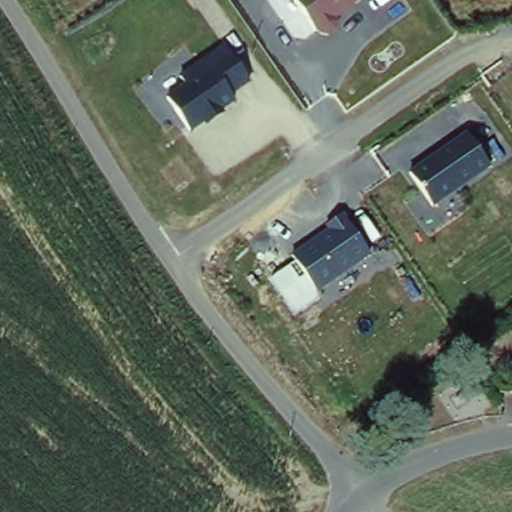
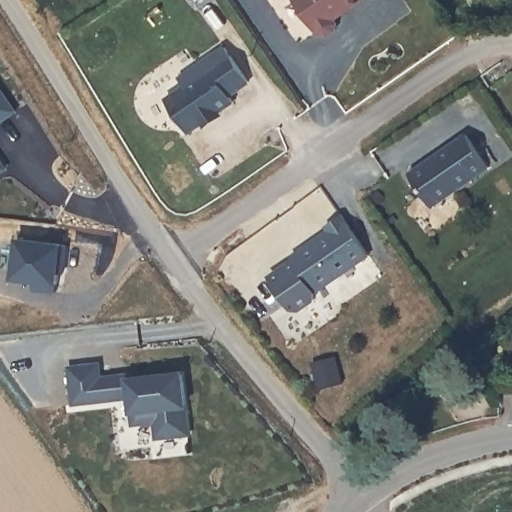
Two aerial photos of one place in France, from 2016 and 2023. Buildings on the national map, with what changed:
unchanged [(339,27),(330,35),(319,32),(296,0),(363,0),(338,22),(339,27)]
unchanged [(186,85),(181,77),(227,47),(254,85),(233,97),(236,103),(222,114),(224,116),(207,127),(204,124),(191,132),(169,99),(186,85)]
new [(0,124),(0,85),(19,111),(0,124)]
unchanged [(467,134),(491,167),(434,207),(410,172),(467,134)]
new [(0,176),(0,156),(10,170),(0,176)]
unchanged [(326,231),(325,227),(343,216),(371,256),(319,291),(292,255),(326,231)]
new [(319,291),(318,302),(300,315),(292,313),(265,275),(292,255),(319,291)]
new [(100,363),(101,378),(127,377),(186,373),(189,410),(193,437),(156,440),(153,424),(131,426),(131,414),(130,399),(72,406),(68,367),(100,363)]

